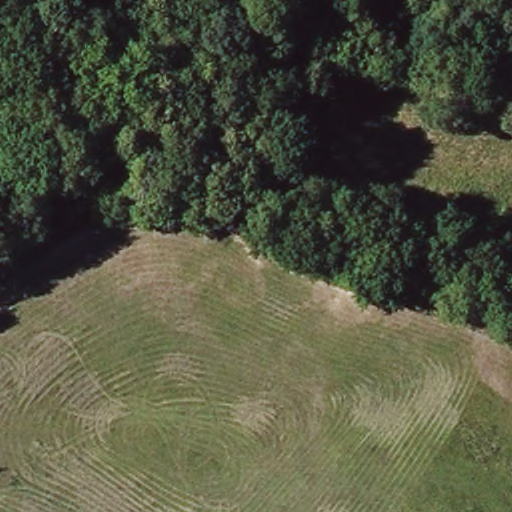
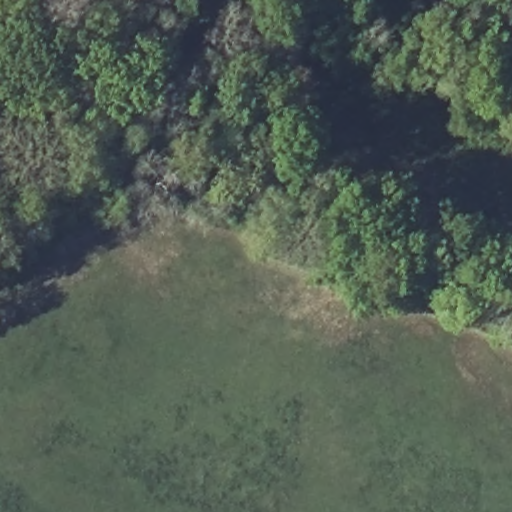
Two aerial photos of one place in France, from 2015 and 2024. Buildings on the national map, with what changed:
[]

